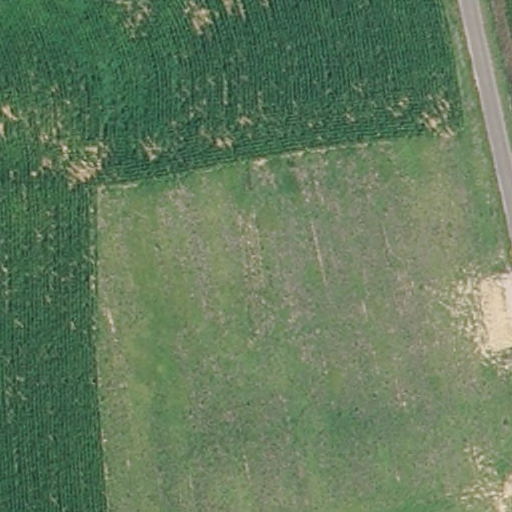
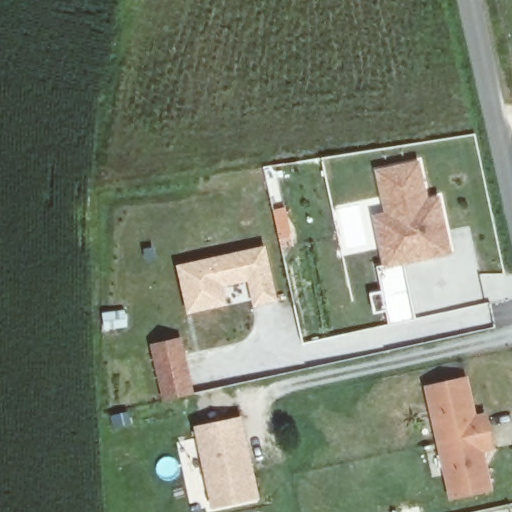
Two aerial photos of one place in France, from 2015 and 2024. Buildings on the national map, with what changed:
new [(445,251),(403,259),(386,264),(376,214),(383,213),(392,211),(390,202),(386,202),(379,169),(418,161),(426,199),(438,196),(445,229),(450,250),(445,251)]
new [(277,299),(253,306),(249,281),(224,287),(227,305),(190,314),(178,265),(264,247),(277,299)]
new [(195,394),(164,402),(150,344),(182,337),(195,394)]
new [(466,377),(475,416),(485,413),(492,445),(481,447),(490,486),(452,494),(428,385),(466,377)]
new [(242,416),(260,499),(211,509),(194,426),(242,416)]

